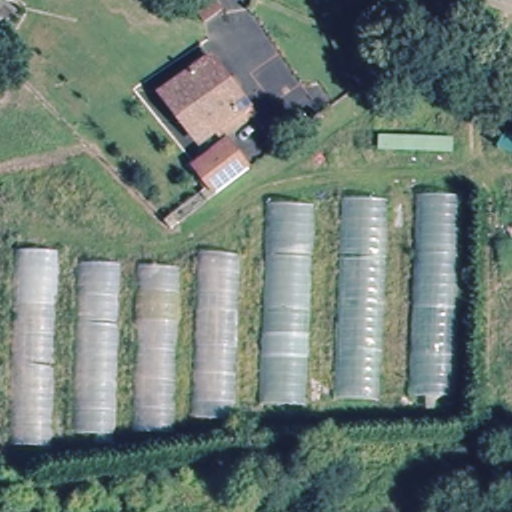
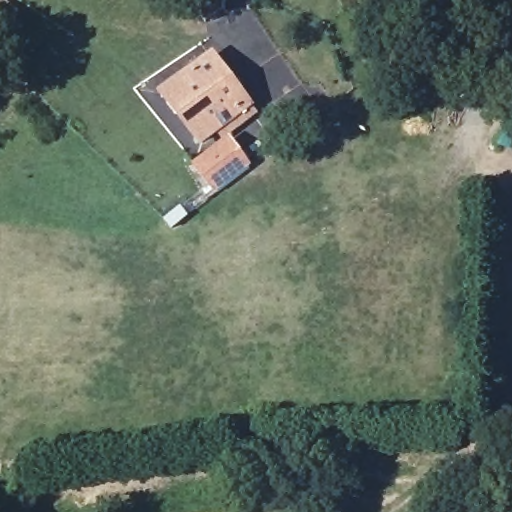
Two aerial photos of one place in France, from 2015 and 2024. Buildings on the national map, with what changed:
unchanged [(6,0),(20,15),(0,39),(0,0),(6,0)]
unchanged [(203,59),(243,116),(200,146),(162,89),(203,59)]
unchanged [(195,167),(232,147),(247,175),(210,195),(195,167)]
demolished [(193,269),(196,244),(260,244),(262,202),(463,197),(457,404),(232,403),(231,424),(184,421),(181,439),(69,434),(77,261),(193,269)]

